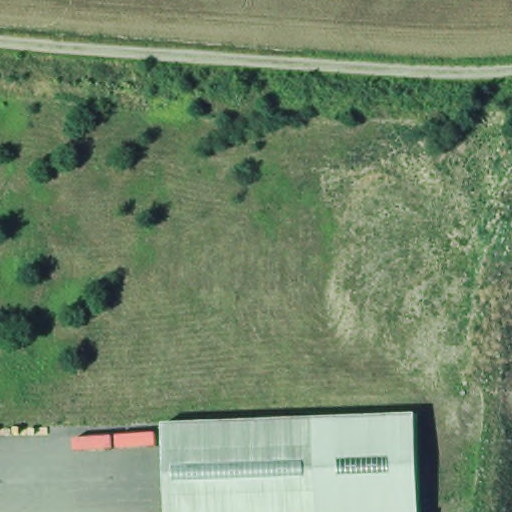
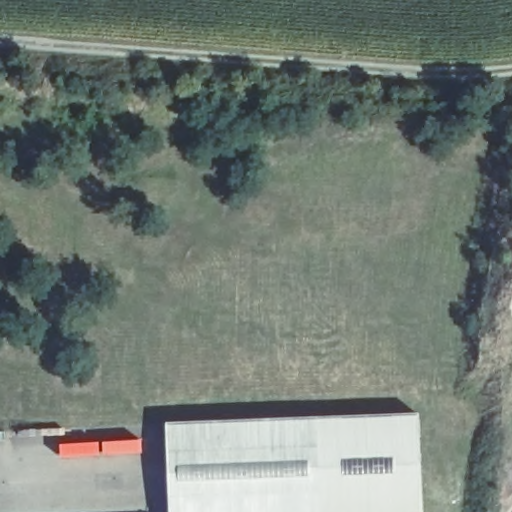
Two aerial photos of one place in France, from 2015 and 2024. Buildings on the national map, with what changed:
unchanged [(415,414),(417,512),(318,512),(315,418),(415,414)]
unchanged [(163,423),(291,419),(315,418),(318,512),(166,512),(163,423)]

